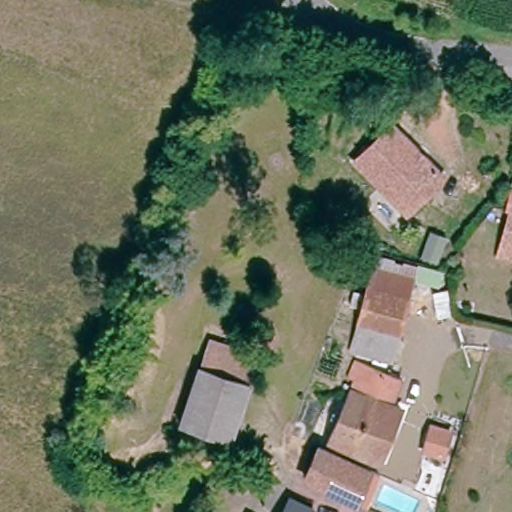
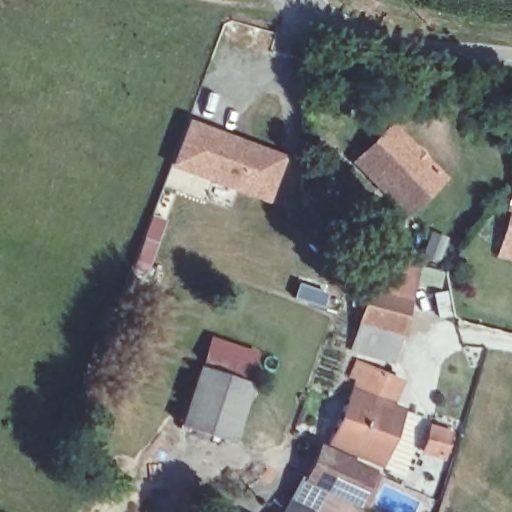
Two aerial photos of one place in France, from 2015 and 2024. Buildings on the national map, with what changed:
new [(267,202),(170,167),(188,122),(283,156),(267,202)]
unchanged [(435,171),(415,194),(401,210),(347,165),(382,124),(420,158),(435,171)]
unchanged [(496,254),(499,242),(508,209),(503,208),(507,190),(512,191),(512,259),(496,254)]
unchanged [(370,259),(410,269),(395,331),(354,321),(370,259)]
unchanged [(347,349),(354,321),(395,331),(394,335),(388,359),(352,351),(347,349)]
unchanged [(203,348),(214,352),(218,341),(247,349),(238,381),(198,368),(203,348)]
unchanged [(344,378),(350,361),(380,370),(397,375),(388,405),(396,409),(379,461),(327,442),(348,380),(344,378)]
unchanged [(238,381),(245,383),(230,436),(178,420),(193,367),(198,368),(238,381)]
new [(430,436),(449,442),(442,467),(422,461),(430,436)]
unchanged [(304,478),(317,447),(324,449),(370,471),(356,503),(351,503),(316,484),(304,478)]
new [(299,475),(304,478),(316,484),(325,489),(312,512),(291,512),(280,508),(299,475)]
unchanged [(280,508),(291,512),(279,512),(280,508)]

